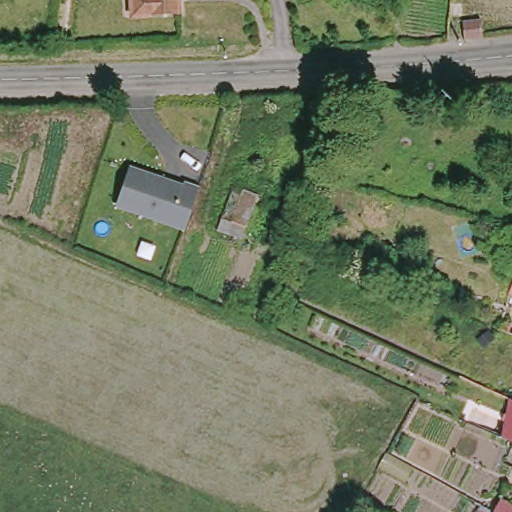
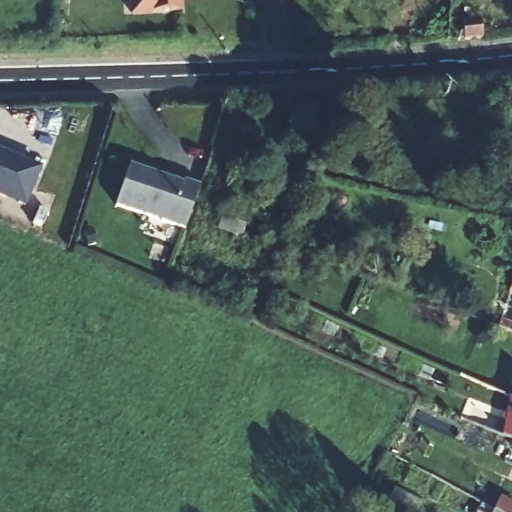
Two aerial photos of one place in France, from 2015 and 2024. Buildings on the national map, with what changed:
unchanged [(177,16),(132,19),(131,0),(177,0),(177,16)]
new [(43,167),(26,208),(0,198),(0,150),(43,167)]
unchanged [(130,167),(200,189),(185,231),(116,207),(130,167)]
unchanged [(225,217),(235,190),(250,194),(240,222),(225,217)]
unchanged [(272,232),(283,236),(279,249),(267,246),(272,232)]
unchanged [(497,322),(507,326),(505,334),(495,329),(497,322)]
demolished [(512,358),(512,369),(508,368),(512,358)]
unchanged [(512,401),(512,439),(499,433),(512,401)]
unchanged [(511,494),(509,501),(512,503),(512,512),(497,512),(505,492),(511,494)]

